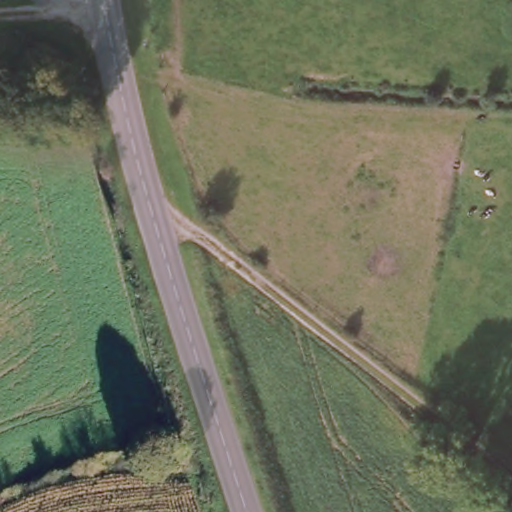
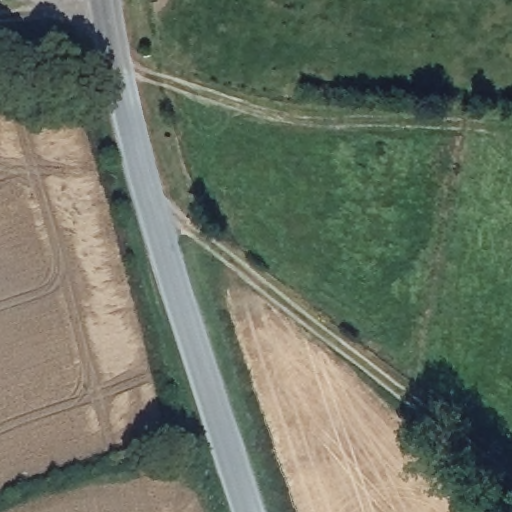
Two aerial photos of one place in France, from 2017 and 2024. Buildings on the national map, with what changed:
unchanged [(40,34),(52,82),(30,89),(17,40),(40,34)]

